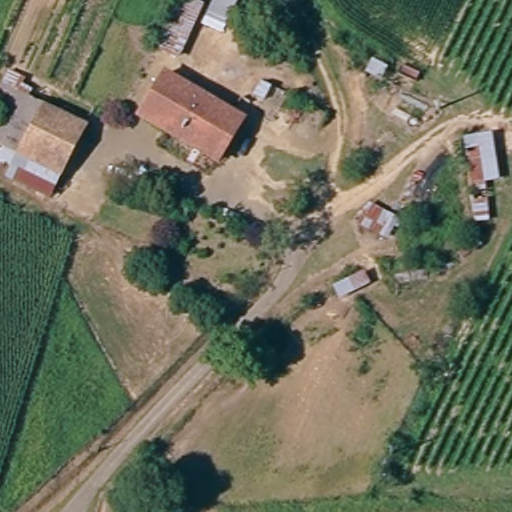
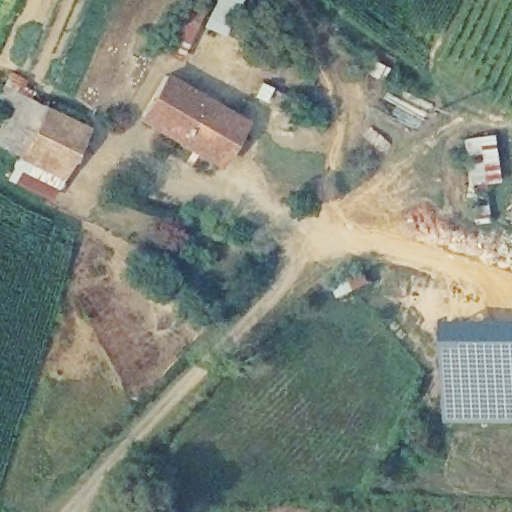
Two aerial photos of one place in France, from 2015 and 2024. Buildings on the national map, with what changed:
new [(184,0),(190,0),(205,7),(179,59),(160,50),(184,0)]
demolished [(173,40),(194,0),(215,0),(188,49),(173,40)]
new [(215,0),(244,0),(226,34),(203,23),(215,0)]
unchanged [(232,112),(243,95),(254,103),(220,162),(142,118),(166,74),(232,112)]
unchanged [(26,159),(5,148),(29,97),(50,109),(26,159)]
unchanged [(66,180),(55,174),(26,159),(50,109),(90,131),(66,180)]
unchanged [(497,133),(505,183),(492,184),(495,225),(478,226),(467,136),(497,133)]
new [(448,427),(448,325),(512,325),(512,427),(448,427)]

